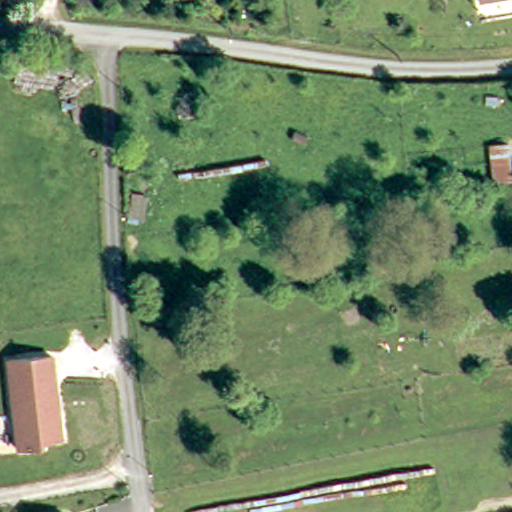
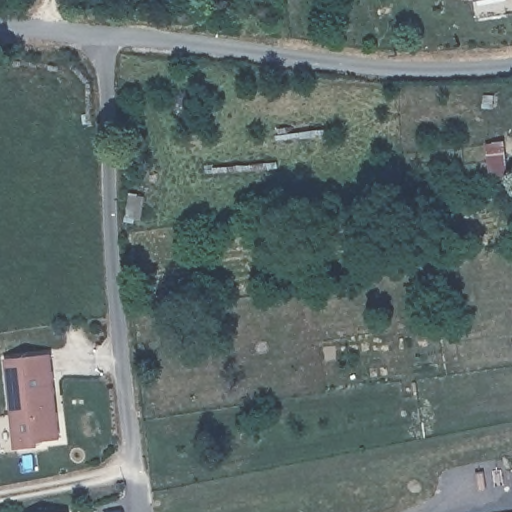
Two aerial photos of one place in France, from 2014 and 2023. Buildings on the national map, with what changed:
unchanged [(484,3),(483,0),(502,0),(484,3)]
unchanged [(509,178),(492,182),(485,145),(503,143),(509,178)]
unchanged [(53,351),(62,440),(16,451),(6,358),(53,351)]

